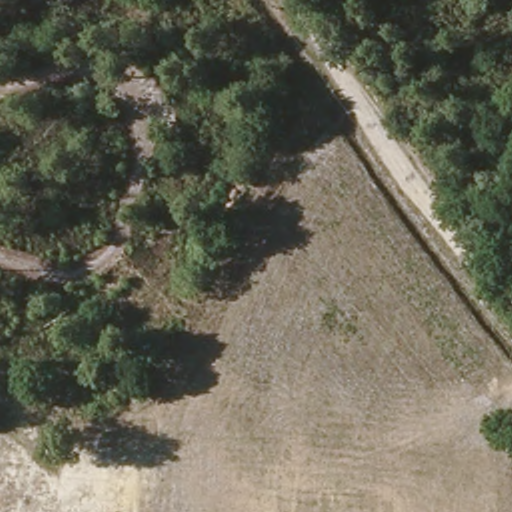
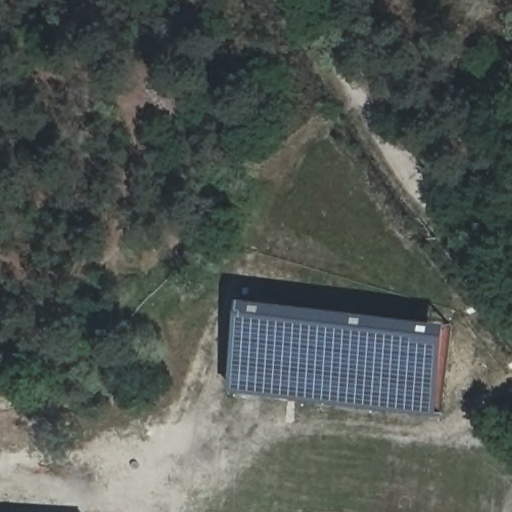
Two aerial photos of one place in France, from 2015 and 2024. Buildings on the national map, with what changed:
new [(241,294),(446,317),(439,408),(231,385),(241,294)]

